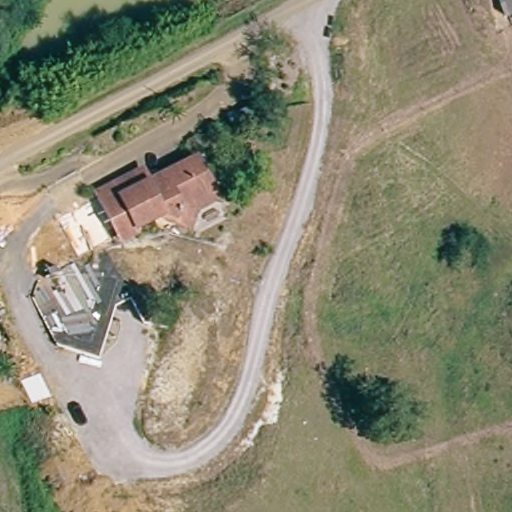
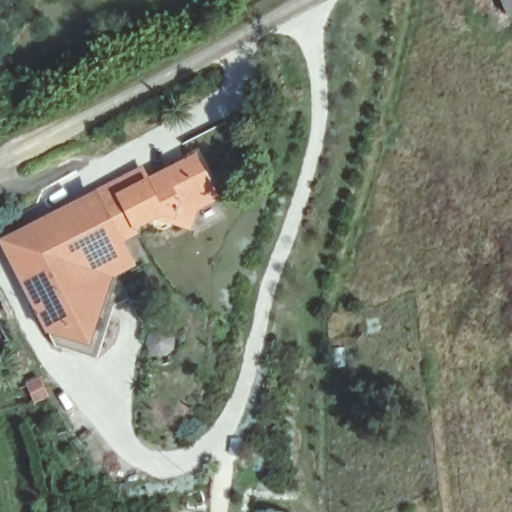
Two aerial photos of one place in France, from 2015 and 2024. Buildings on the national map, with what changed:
unchanged [(500,0),(512,0),(512,20),(509,21),(500,0)]
new [(137,267),(114,279),(92,347),(47,334),(0,245),(0,240),(91,191),(111,182),(129,174),(141,167),(148,180),(164,172),(194,156),(202,153),(226,203),(207,210),(204,214),(190,232),(178,225),(173,230),(159,221),(137,231),(140,241),(125,248),(137,267)]
demolished [(178,225),(173,230),(159,221),(137,231),(120,238),(117,240),(96,202),(118,192),(111,182),(129,174),(137,185),(148,180),(153,190),(166,180),(164,172),(194,156),(202,153),(226,203),(207,210),(204,214),(190,232),(178,225)]
demolished [(91,253),(70,214),(96,202),(117,240),(91,253)]

